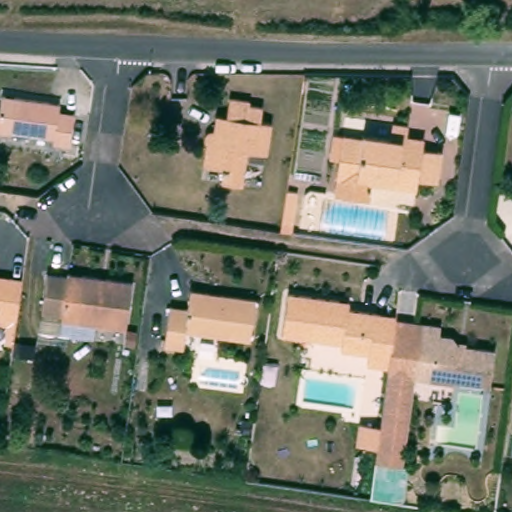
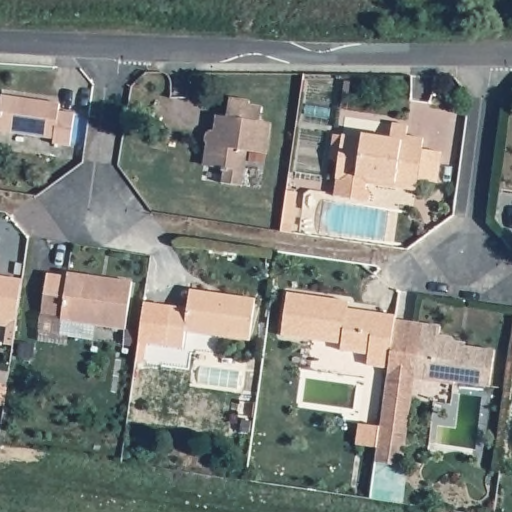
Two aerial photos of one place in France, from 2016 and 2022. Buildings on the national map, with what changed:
unchanged [(0,93),(55,101),(54,109),(71,112),(66,144),(49,141),(50,136),(0,128),(0,93)]
unchanged [(206,145),(204,142),(204,138),(206,134),(209,132),(212,131),(214,131),(217,116),(226,118),(229,100),(249,102),(249,106),(263,109),(261,124),(271,125),(266,156),(246,154),(241,187),(220,183),(223,170),(208,168),(203,166),(206,145)]
unchanged [(435,182),(419,180),(417,193),(381,188),(381,183),(359,180),(358,184),(337,181),(344,138),(364,141),(364,138),(389,141),(393,125),(408,126),(406,138),(424,141),(423,151),(439,153),(435,182)]
unchanged [(64,335),(65,320),(66,316),(46,313),(51,275),(71,278),(72,274),(136,283),(129,329),(98,324),(96,339),(64,335)]
unchanged [(392,364),(368,361),(369,351),(343,347),(344,340),(285,332),(292,289),(343,297),(352,298),(351,304),(351,305),(399,312),(399,317),(392,364)]
unchanged [(185,309),(188,291),(254,300),(248,341),(187,333),(184,349),(164,346),(169,307),(185,309)]
unchanged [(399,317),(424,321),(417,375),(404,461),(378,457),(392,364),(399,317)]
unchanged [(443,324),(442,332),(454,334),(462,342),(496,348),(491,383),(459,379),(458,382),(417,375),(424,321),(443,324)]
unchanged [(404,461),(404,467),(413,468),(405,504),(371,498),(378,457),(404,461)]

